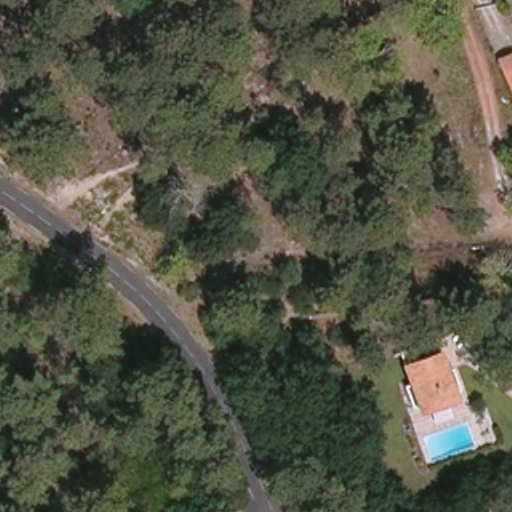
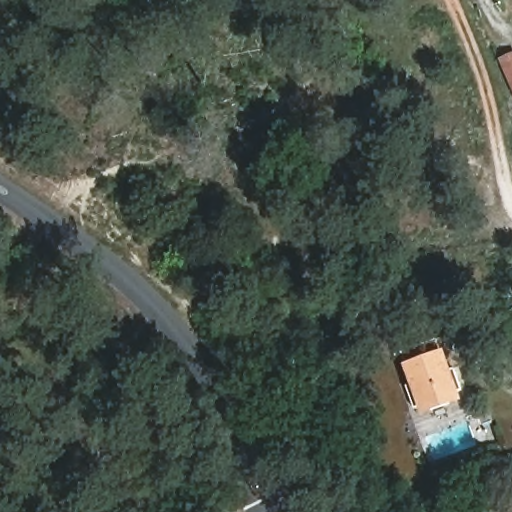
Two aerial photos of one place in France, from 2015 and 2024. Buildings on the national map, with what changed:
unchanged [(512,64),(512,82),(503,86),(489,53),(505,47),(512,64)]
unchanged [(447,377),(457,374),(464,397),(454,402),(448,411),(428,417),(421,414),(410,414),(404,394),(413,389),(402,358),(437,348),(447,377)]

